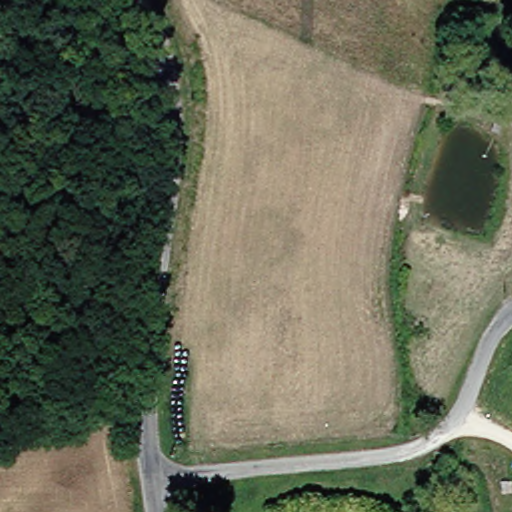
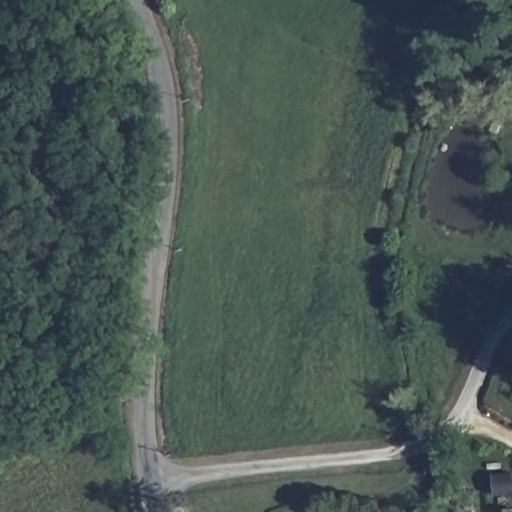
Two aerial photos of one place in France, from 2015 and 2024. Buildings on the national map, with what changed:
[]

